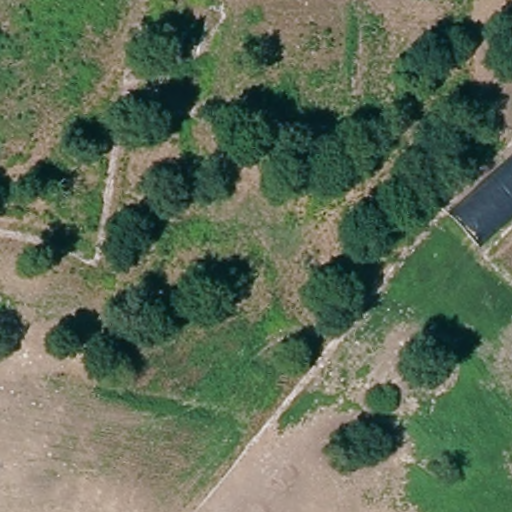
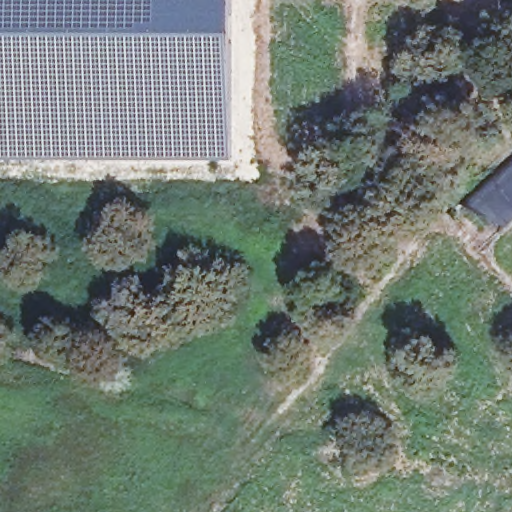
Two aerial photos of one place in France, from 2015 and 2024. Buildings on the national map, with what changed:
new [(233,159),(0,159),(0,0),(232,0),(233,159)]
demolished [(202,112),(159,105),(178,0),(181,0),(223,6),(202,112)]
unchanged [(454,217),(512,163),(512,221),(481,249),(454,217)]

